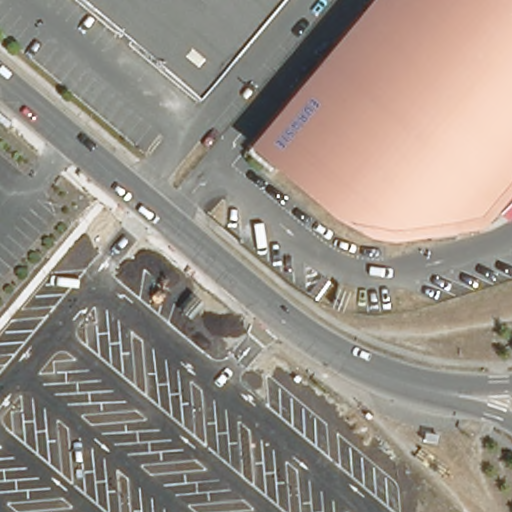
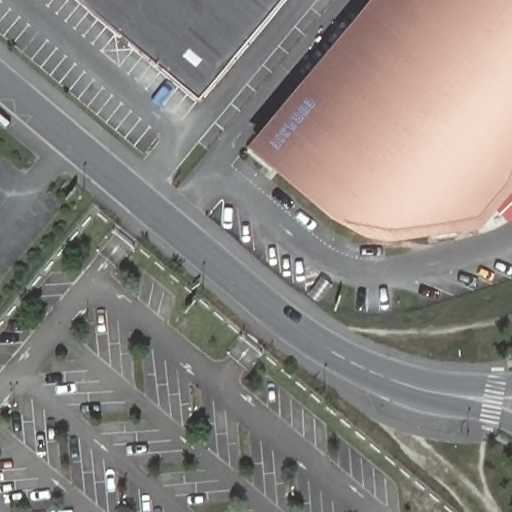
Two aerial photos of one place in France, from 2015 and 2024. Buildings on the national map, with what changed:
unchanged [(81,0),(283,0),(200,100),(81,0)]
unchanged [(512,162),(503,185),(471,225),(385,236),(363,232),(330,214),(247,145),(369,0),(512,0),(512,162)]

